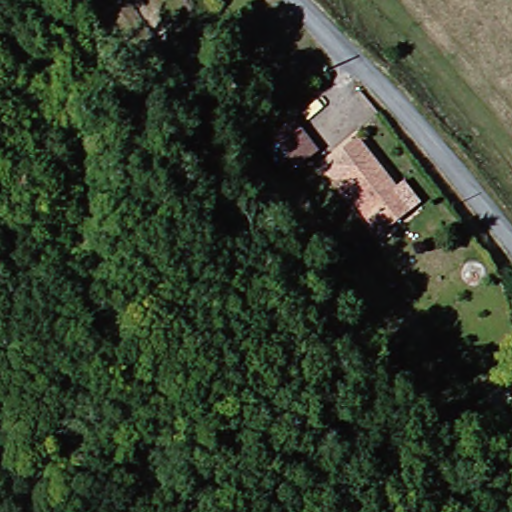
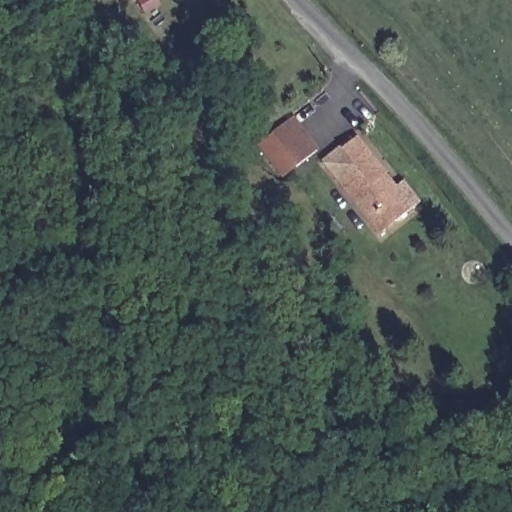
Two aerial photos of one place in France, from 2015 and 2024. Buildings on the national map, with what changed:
new [(319,149),(282,176),(258,143),(293,116),(319,149)]
demolished [(301,122),(328,152),(310,169),(281,139),(301,122)]
unchanged [(401,174),(397,179),(419,203),(389,227),(341,176),(330,164),(350,146),(364,134),(401,174)]

